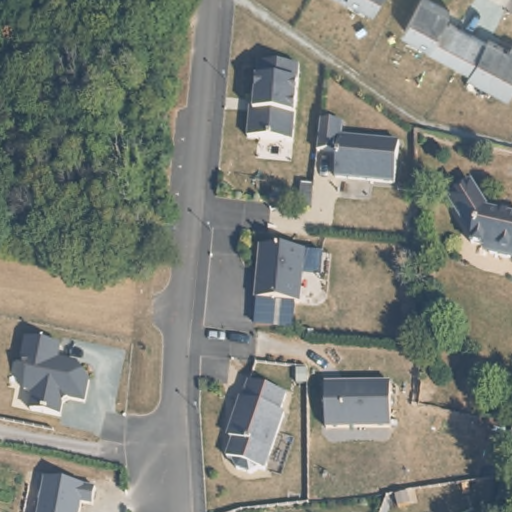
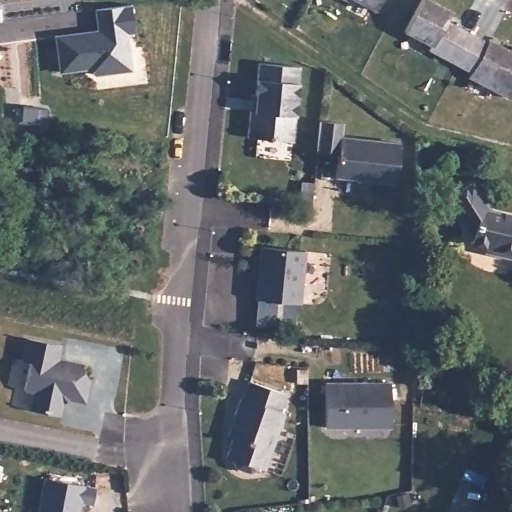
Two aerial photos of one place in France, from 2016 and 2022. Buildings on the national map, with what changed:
unchanged [(361,0),(381,0),(376,8),(361,0)]
unchanged [(430,42),(404,29),(419,0),(434,0),(450,9),(445,19),(473,33),(457,63),(428,48),(430,42)]
new [(85,33),(85,38),(99,36),(96,10),(131,5),(135,31),(127,33),(131,70),(96,75),(88,69),(60,73),(55,37),(85,33)]
unchanged [(488,41),(488,39),(510,50),(512,47),(512,91),(508,98),(467,75),(470,71),(457,63),(473,33),(488,41)]
unchanged [(293,143),(290,143),(249,139),(251,112),(255,113),(260,66),(285,68),(300,69),(293,143)]
unchanged [(342,121),(340,135),(399,141),(395,182),(335,174),(338,150),(317,148),(318,134),(320,118),(342,121)]
unchanged [(484,246),(480,239),(465,234),(469,219),(458,216),(440,189),(465,175),(482,204),(508,209),(512,213),(512,248),(502,250),(484,246)]
unchanged [(260,248),(298,252),(303,252),(300,282),(298,304),(254,300),(256,283),(257,270),(260,248)]
unchanged [(31,410),(35,393),(25,390),(31,364),(24,362),(28,341),(61,347),(59,361),(79,365),(90,381),(85,402),(69,399),(63,403),(60,416),(31,410)]
unchanged [(252,379),(290,391),(284,409),(288,410),(268,467),(261,465),(260,467),(254,471),(240,466),(237,460),(238,457),(230,455),(239,428),(236,427),(240,413),(238,412),(244,395),(246,396),(252,379)]
unchanged [(392,385),(392,429),(328,429),(328,385),(392,385)]
unchanged [(79,512),(38,512),(45,476),(95,485),(92,502),(81,500),(79,512)]

